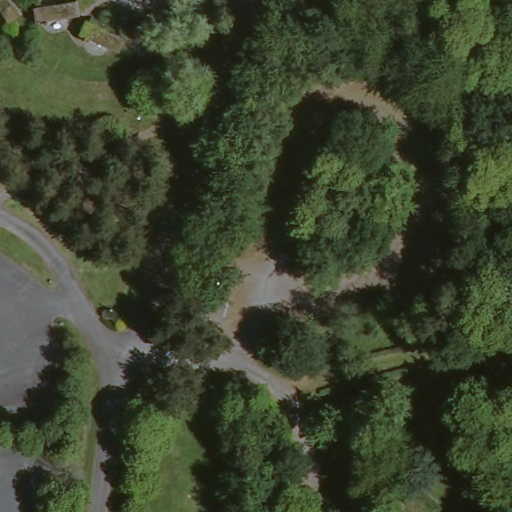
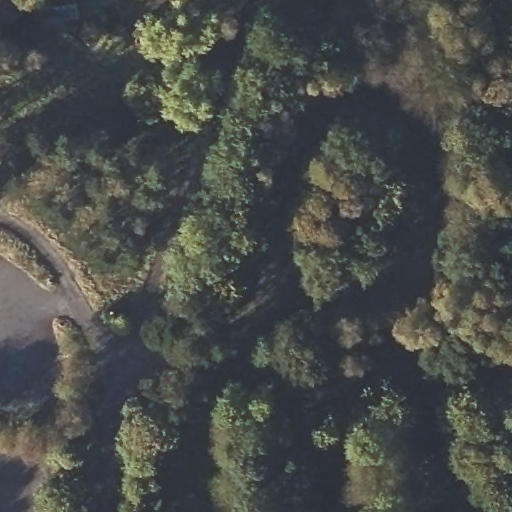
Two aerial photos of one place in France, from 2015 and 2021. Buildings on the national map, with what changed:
unchanged [(18,17),(5,27),(0,19),(0,0),(7,0),(18,17)]
unchanged [(79,2),(78,21),(36,25),(35,5),(79,2)]
unchanged [(124,41),(116,55),(78,36),(86,22),(124,41)]
unchanged [(146,26),(150,31),(173,56),(157,68),(132,39),(127,33),(138,29),(146,26)]

